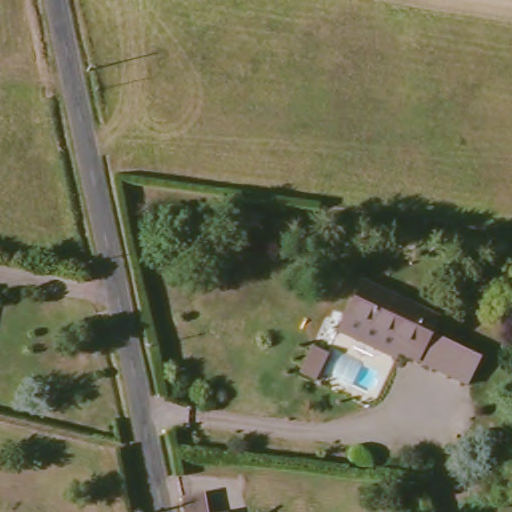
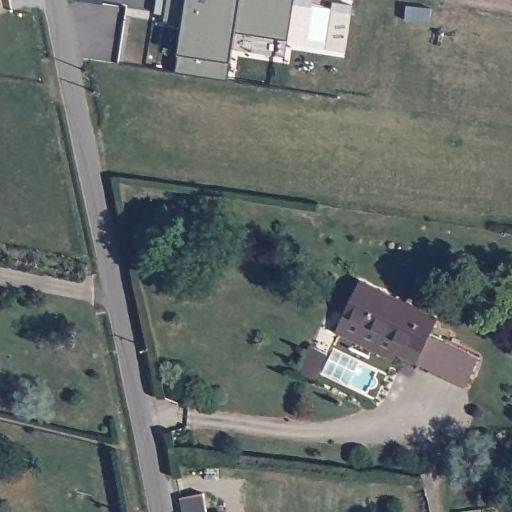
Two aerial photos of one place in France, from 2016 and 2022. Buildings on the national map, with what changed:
new [(231,63),(229,79),(177,72),(179,53),(183,24),(165,21),(168,0),(293,0),(288,38),(238,30),(231,63)]
new [(408,8),(432,12),(430,27),(406,22),(408,8)]
unchanged [(443,318),(427,355),(349,317),(366,281),(443,318)]
unchanged [(209,512),(184,512),(184,493),(206,490),(209,512)]

